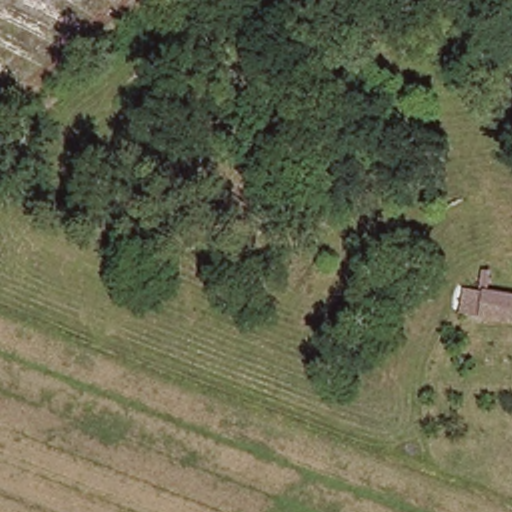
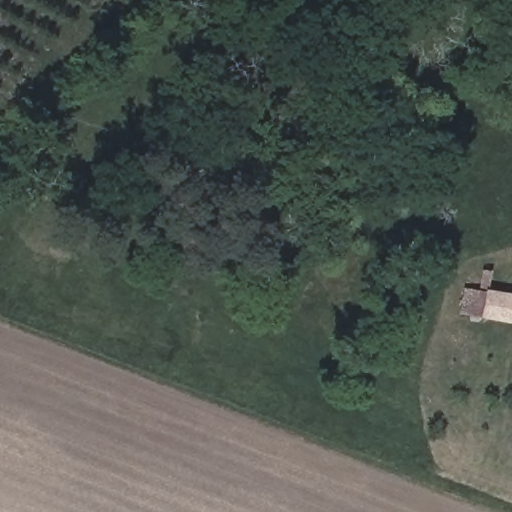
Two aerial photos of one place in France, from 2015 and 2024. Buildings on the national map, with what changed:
unchanged [(510,323),(466,320),(467,291),(512,294),(510,323)]

